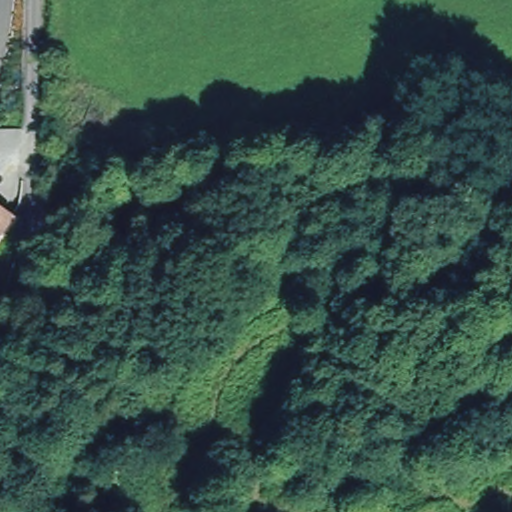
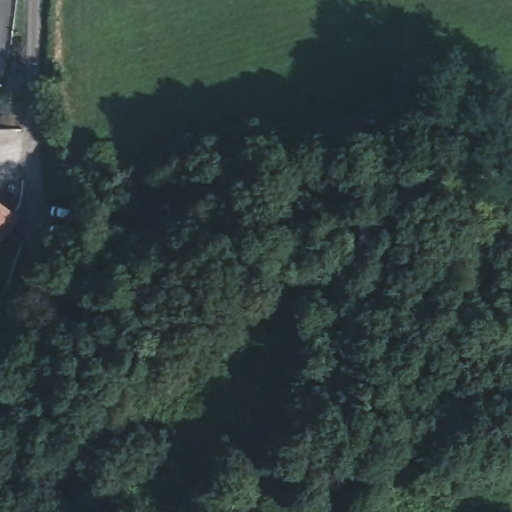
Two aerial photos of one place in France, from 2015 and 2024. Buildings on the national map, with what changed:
unchanged [(10,212),(0,224),(0,205),(10,212)]

